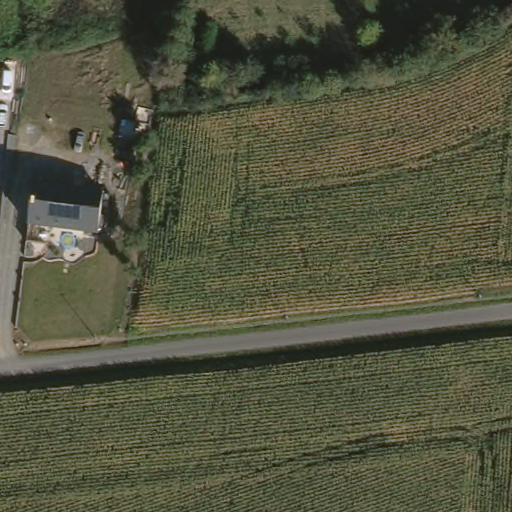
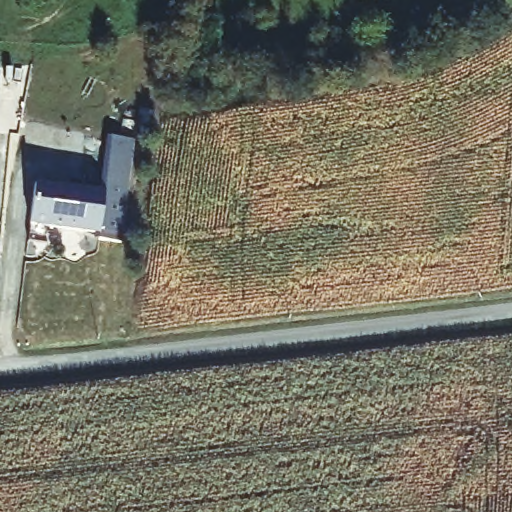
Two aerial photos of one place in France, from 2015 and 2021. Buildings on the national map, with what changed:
new [(107,136),(134,140),(122,243),(99,240),(100,232),(104,191),(99,191),(107,136)]
unchanged [(104,191),(100,232),(24,225),(28,185),(104,191)]

